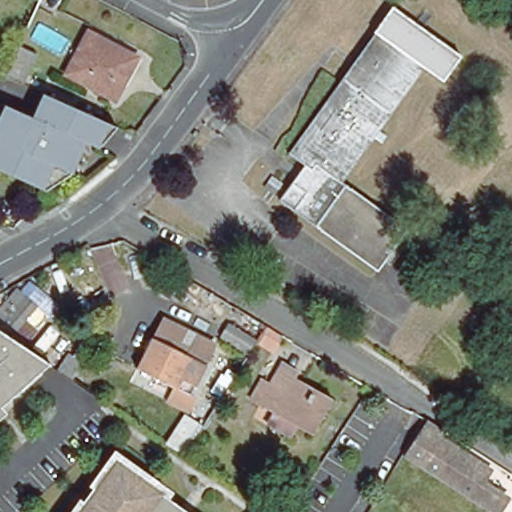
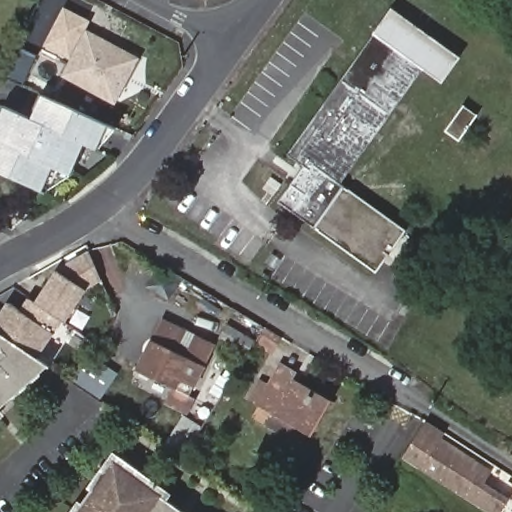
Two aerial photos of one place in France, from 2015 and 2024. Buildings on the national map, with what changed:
new [(63,6),(90,21),(84,32),(88,35),(66,77),(62,75),(70,59),(44,45),(63,6)]
unchanged [(461,61),(443,85),(422,70),(375,36),(393,12),(461,61)]
unchanged [(123,84),(114,101),(66,77),(88,35),(130,57),(136,60),(123,84)]
unchanged [(422,70),(340,185),(344,187),(399,226),(406,230),(403,236),(384,262),(378,271),(371,266),(278,202),(303,167),(288,156),(375,36),(422,70)]
unchanged [(17,50),(32,56),(20,86),(4,79),(17,50)]
unchanged [(31,120),(43,94),(54,99),(118,127),(87,145),(72,177),(56,169),(45,193),(0,173),(0,119),(5,108),(31,120)]
unchanged [(272,195),(261,187),(269,176),(280,183),(272,195)]
new [(101,282),(86,291),(67,321),(63,318),(36,301),(56,268),(88,251),(101,282)]
demolished [(27,337),(4,319),(26,294),(48,312),(27,337)]
new [(21,310),(29,297),(36,301),(63,318),(55,334),(39,361),(6,339),(0,335),(0,317),(9,302),(21,310)]
unchanged [(228,324),(255,340),(247,355),(220,338),(228,324)]
unchanged [(189,396),(176,390),(138,372),(138,371),(147,352),(153,341),(160,326),(187,338),(180,355),(191,360),(202,366),(189,396)]
unchanged [(39,361),(46,366),(22,387),(26,393),(0,417),(0,335),(6,339),(39,361)]
unchanged [(314,435),(301,427),(294,438),(271,425),(278,413),(256,401),(267,382),(274,387),(288,364),(303,373),(299,378),(306,382),(335,400),(314,435)]
unchanged [(447,432),(443,438),(494,470),(487,481),(512,496),(512,498),(504,512),(492,512),(423,470),(407,459),(430,422),(447,432)]
unchanged [(92,492),(111,465),(157,497),(154,502),(169,512),(84,512),(96,495),(92,492)]
unchanged [(83,512),(78,512),(80,510),(83,512)]

